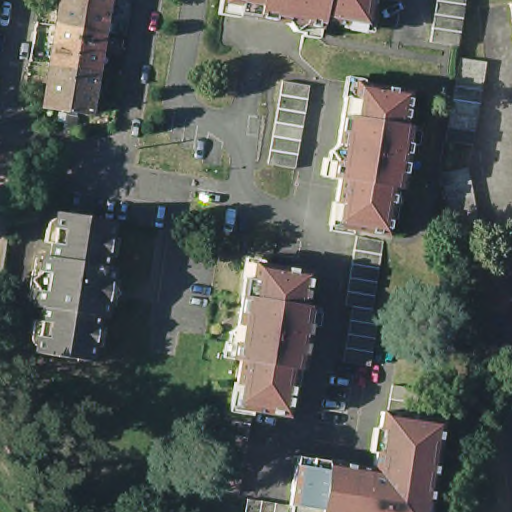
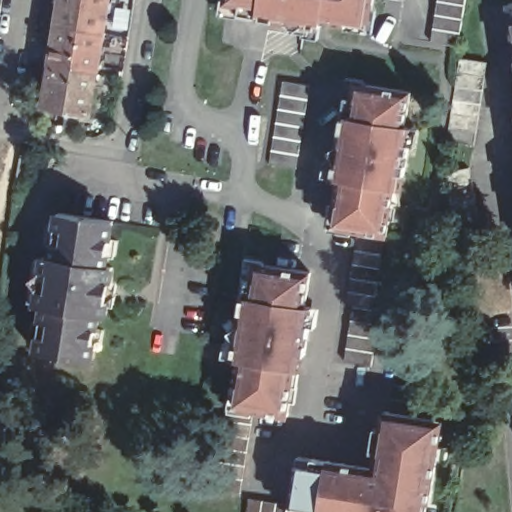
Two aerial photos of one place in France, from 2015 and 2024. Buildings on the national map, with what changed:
unchanged [(30,62),(32,47),(52,50),(56,28),(61,0),(108,0),(102,35),(96,74),(90,116),(66,112),(44,108),(50,66),(30,62)]
unchanged [(304,37),(306,26),(240,15),(240,7),(225,5),(226,0),(372,0),(368,22),(345,19),(344,26),(321,23),(320,29),(319,39),(304,37)]
unchanged [(431,42),(438,0),(466,0),(459,48),(431,42)]
unchanged [(510,0),(512,0),(512,15),(510,0)]
unchanged [(455,96),(459,72),(461,59),(487,63),(475,146),(448,142),(455,96)]
unchanged [(295,168),(267,164),(275,118),(282,81),(309,85),(295,168)]
unchanged [(407,146),(410,146),(405,177),(402,176),(399,191),(395,190),(387,239),(339,231),(342,209),(335,207),(338,182),(331,181),(345,101),(355,102),(357,87),(410,95),(405,128),(409,128),(407,146)]
unchanged [(441,175),(468,169),(479,224),(452,230),(441,175)]
unchanged [(45,253),(51,254),(58,208),(112,216),(106,260),(113,261),(105,312),(99,311),(92,357),(37,349),(44,303),(37,303),(45,253)]
unchanged [(379,244),(384,245),(372,312),(367,312),(352,309),(345,308),(357,240),(379,244)]
unchanged [(239,413),(242,390),(235,389),(239,365),(232,364),(245,282),(254,284),(257,269),(309,277),(303,311),(307,312),(305,329),(307,329),(303,359),(300,359),(297,374),(293,374),(285,421),(252,415),(239,413)]
unchanged [(343,362),(352,309),(367,312),(372,312),(379,314),(375,339),(370,366),(370,368),(343,363),(343,362)]
unchanged [(317,463),(378,473),(380,456),(387,458),(391,435),(385,434),(387,416),(393,417),(397,390),(425,394),(420,422),(439,425),(432,465),(440,466),(433,509),(425,507),(425,512),(306,512),(294,510),(300,470),(315,472),(317,463)]
unchanged [(239,413),(252,415),(240,486),(239,498),(212,494),(225,411),(239,413)]
unchanged [(251,512),(252,503),(294,510),(294,512),(251,512)]

